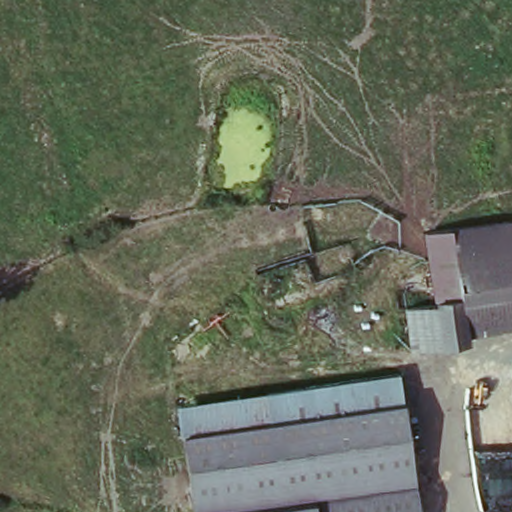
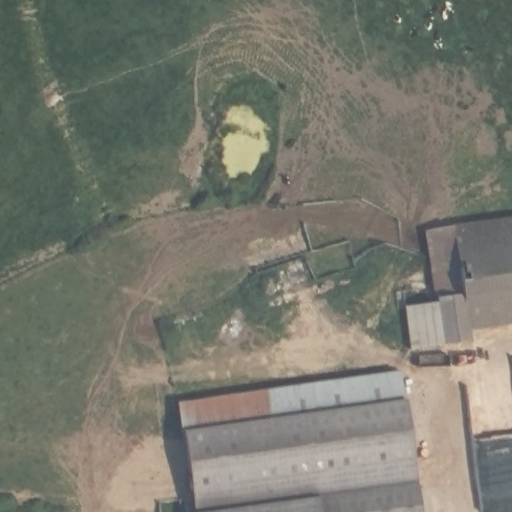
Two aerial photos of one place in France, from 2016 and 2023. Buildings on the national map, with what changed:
unchanged [(402,310),(430,307),(421,235),(512,223),(512,331),(467,336),(469,350),(407,355),(402,310)]
unchanged [(419,512),(190,512),(175,405),(401,375),(419,512)]

